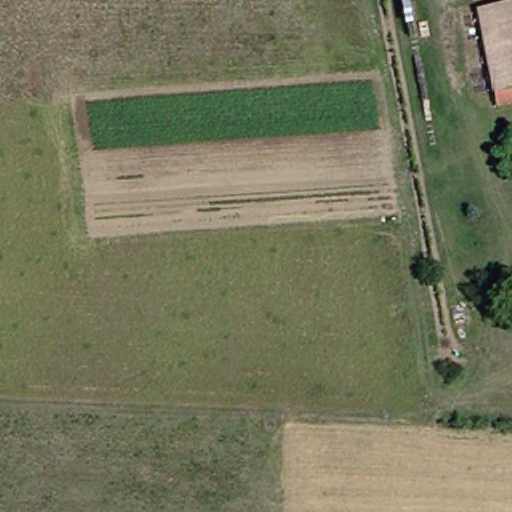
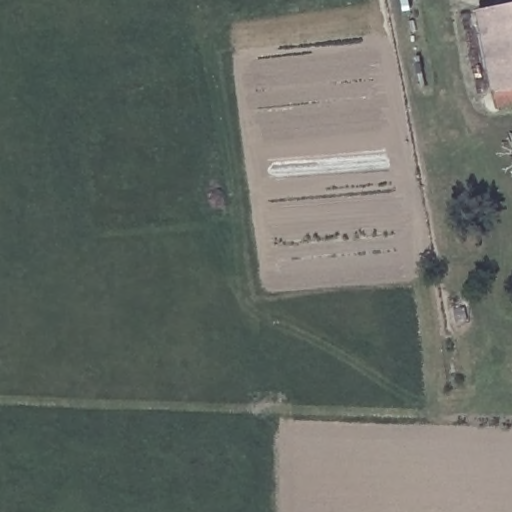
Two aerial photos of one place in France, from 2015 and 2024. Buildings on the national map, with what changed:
unchanged [(503,108),(485,12),(512,8),(512,107),(503,108)]

